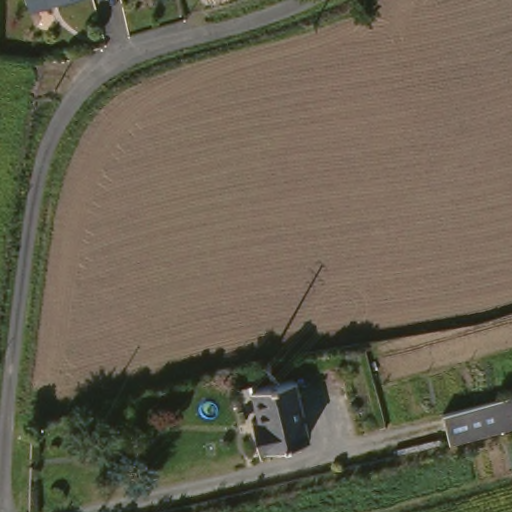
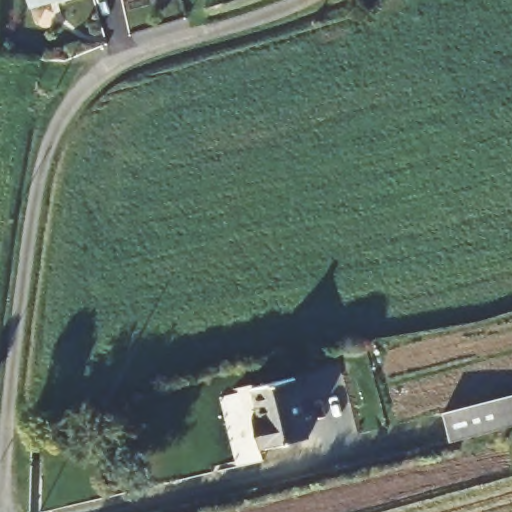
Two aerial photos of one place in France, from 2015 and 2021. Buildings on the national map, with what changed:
unchanged [(33,0),(56,0),(52,1),(54,5),(36,11),(33,0)]
unchanged [(304,379),(317,436),(266,448),(259,420),(266,417),(260,388),(304,379)]
unchanged [(452,409),(512,394),(512,424),(458,437),(452,409)]

